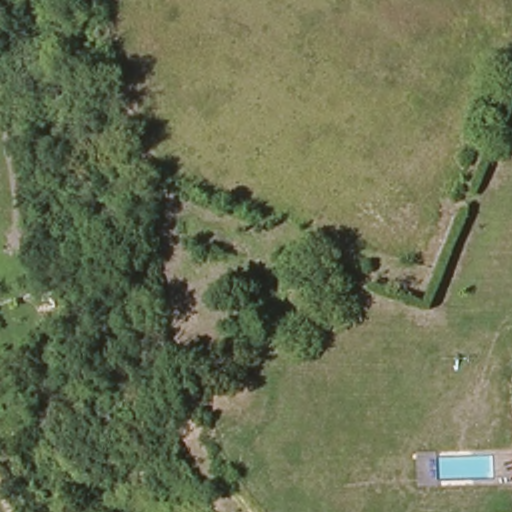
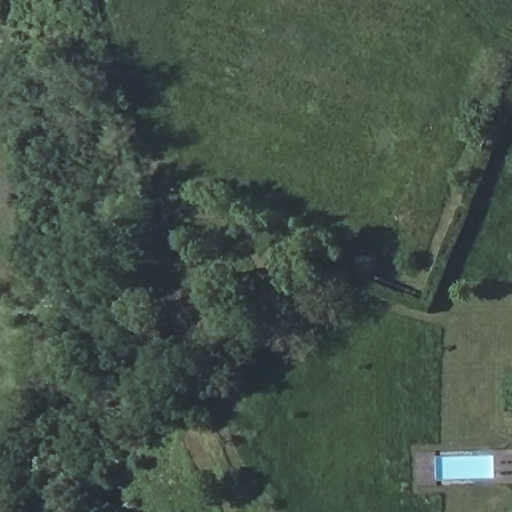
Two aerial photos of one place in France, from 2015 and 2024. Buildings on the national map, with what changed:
[]

